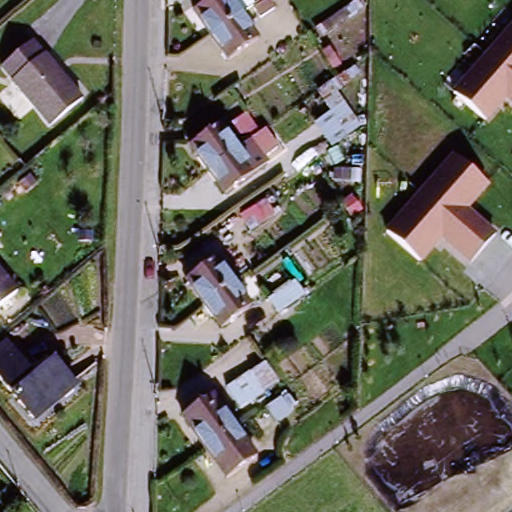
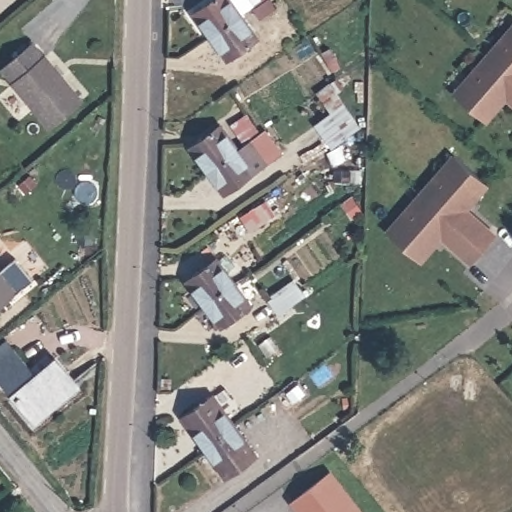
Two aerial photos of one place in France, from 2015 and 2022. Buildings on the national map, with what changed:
unchanged [(213,44),(196,19),(222,0),(226,0),(242,22),(213,44)]
unchanged [(259,47),(230,67),(213,44),(242,22),(259,47)]
unchanged [(487,124),(452,92),(512,25),(512,107),(507,102),(487,124)]
unchanged [(52,132),(17,89),(5,74),(37,49),(49,63),(83,105),(52,132)]
unchanged [(360,76),(336,92),(360,129),(330,150),(313,125),(330,114),(317,94),(355,68),(360,76)]
unchanged [(237,157),(207,179),(190,154),(220,133),(237,157)]
unchanged [(277,158),(263,168),(267,173),(225,204),(207,179),(237,157),(263,138),(277,158)]
unchanged [(490,186),(469,211),(497,235),(470,267),(442,242),(422,265),(385,231),(452,155),(490,186)]
unchanged [(213,239),(223,231),(227,236),(217,244),(213,239)]
unchanged [(187,283),(217,262),(232,285),(250,311),(222,331),(203,306),(187,283)]
unchanged [(0,318),(0,281),(18,303),(0,318)]
unchanged [(62,373),(81,397),(37,432),(0,384),(0,379),(23,361),(45,387),(62,373)]
unchanged [(265,364),(278,384),(264,393),(265,395),(240,411),(226,390),(250,373),(265,364)]
unchanged [(208,450),(187,419),(217,397),(238,427),(208,450)]
unchanged [(238,427),(260,458),(230,480),(208,450),(238,427)]
new [(362,512),(302,512),(294,502),(332,472),(362,512)]

